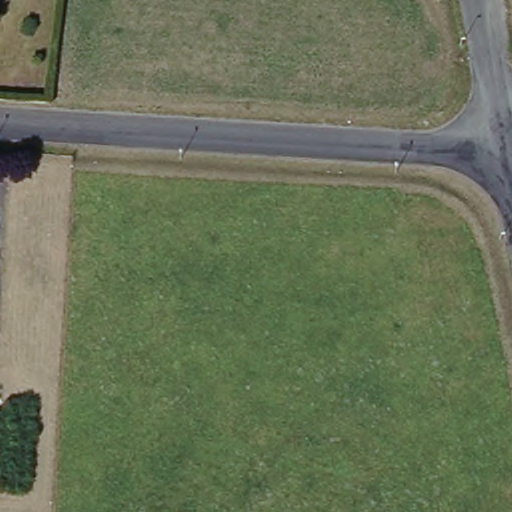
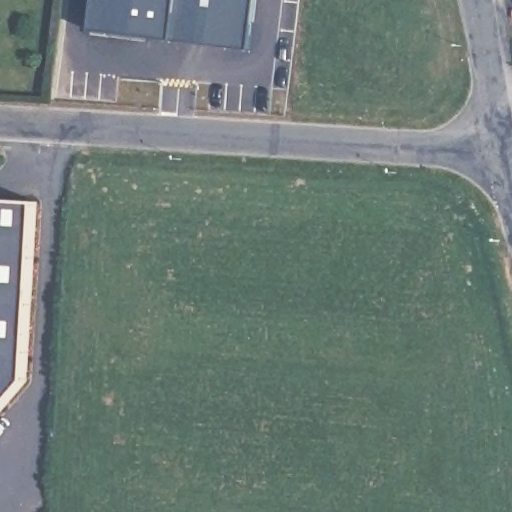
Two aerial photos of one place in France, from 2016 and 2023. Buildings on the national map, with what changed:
new [(259,41),(92,31),(94,0),(260,0),(259,41)]
new [(32,375),(0,414),(0,191),(41,194),(32,375)]
demolished [(5,404),(5,410),(0,409),(0,403),(5,404)]

